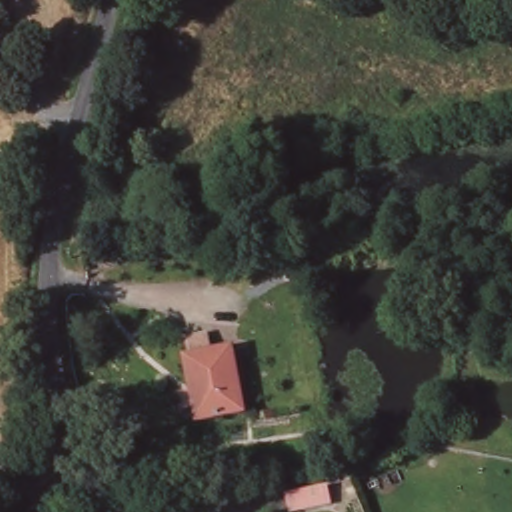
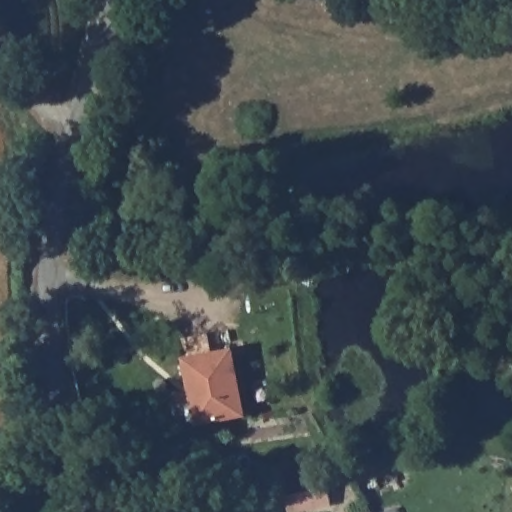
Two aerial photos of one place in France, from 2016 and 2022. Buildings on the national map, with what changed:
unchanged [(189,360),(232,349),(246,415),(202,426),(189,360)]
unchanged [(286,503),(284,494),(326,486),(330,503),(297,510),(287,512),(286,503)]

